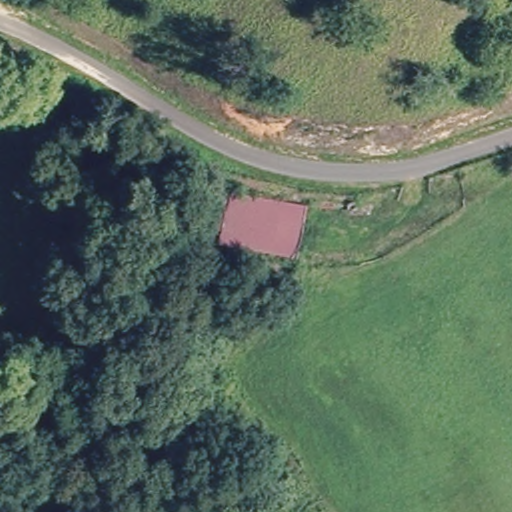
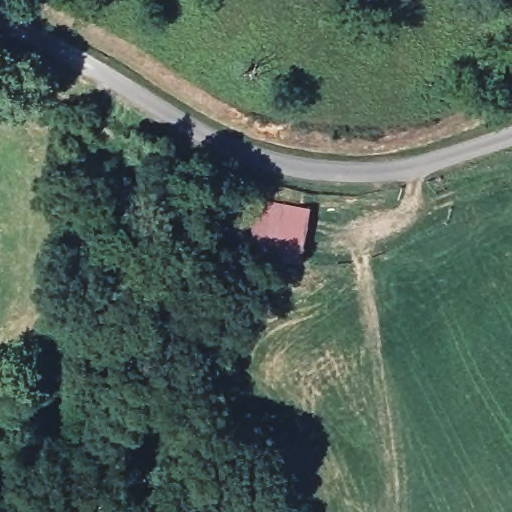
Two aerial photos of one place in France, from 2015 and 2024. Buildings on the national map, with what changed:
unchanged [(213,239),(225,178),(304,188),(294,249),(213,239)]

